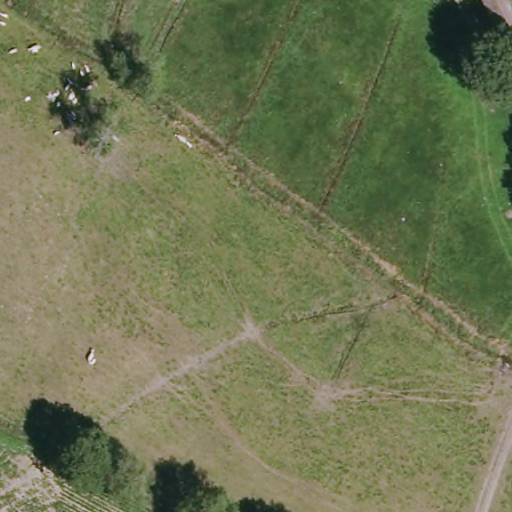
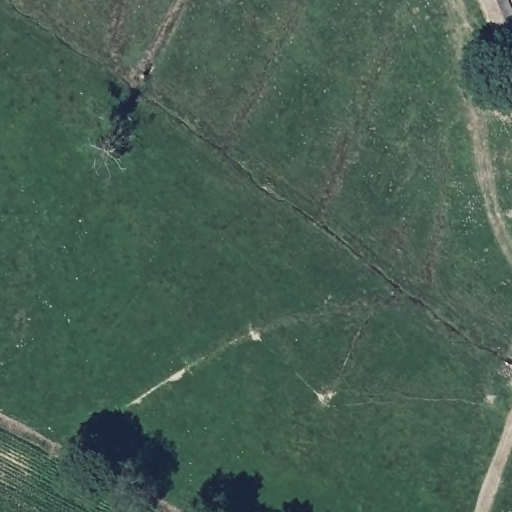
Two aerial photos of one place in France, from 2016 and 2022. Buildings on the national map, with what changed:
unchanged [(512,38),(507,40),(489,0),(510,0),(512,3),(512,38)]

